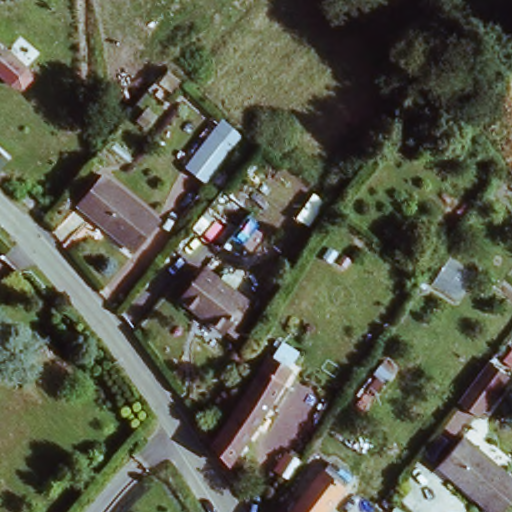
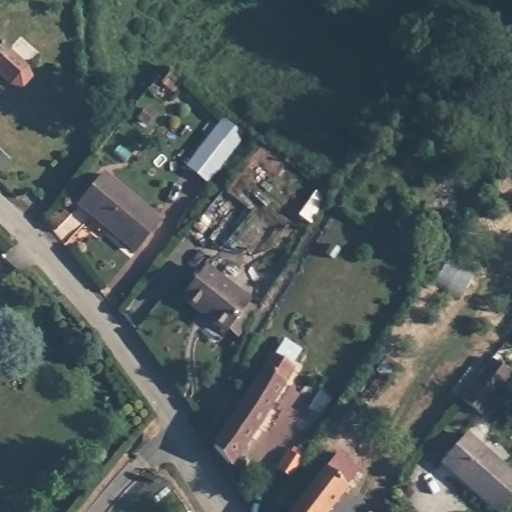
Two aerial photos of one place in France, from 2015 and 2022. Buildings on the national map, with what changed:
unchanged [(8,55),(0,63),(0,45),(8,55)]
unchanged [(221,117),(247,138),(208,187),(185,168),(221,117)]
unchanged [(100,176),(152,218),(130,247),(77,205),(100,176)]
unchanged [(245,304),(225,333),(184,303),(205,274),(245,304)]
unchanged [(275,358),(285,342),(302,352),(291,370),(294,372),(273,402),(250,387),(270,356),(275,358)]
unchanged [(486,358),(505,372),(477,412),(458,398),(486,358)]
unchanged [(207,449),(250,387),(273,402),(232,467),(207,449)]
unchanged [(465,435),(512,478),(512,495),(498,512),(487,512),(437,467),(465,435)]
unchanged [(324,458),(350,477),(325,512),(284,512),(324,458)]

